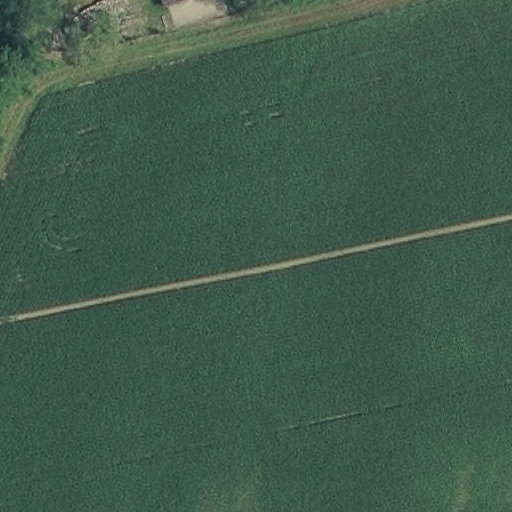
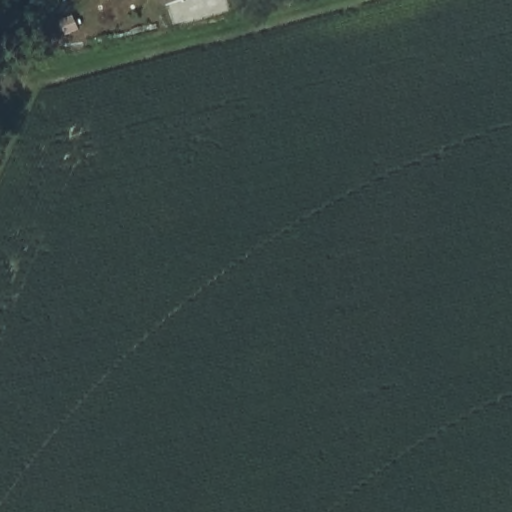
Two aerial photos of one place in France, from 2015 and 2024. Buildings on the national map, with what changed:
unchanged [(187,0),(168,8),(165,0),(187,0)]

